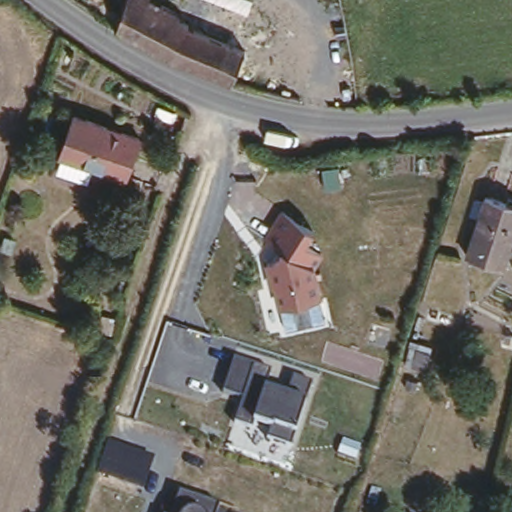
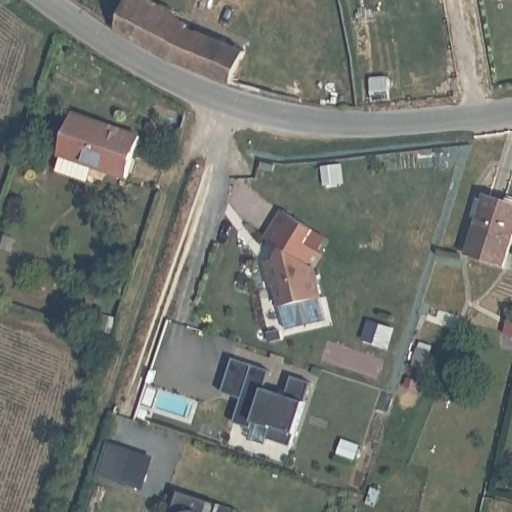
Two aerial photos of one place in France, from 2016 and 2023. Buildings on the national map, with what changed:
unchanged [(180,15),(177,21),(187,26),(185,29),(242,51),(231,80),(205,73),(181,63),(171,59),(164,55),(154,49),(115,26),(125,0),(155,0),(180,15)]
unchanged [(139,134),(126,172),(59,150),(73,111),(139,134)]
unchanged [(469,249),(486,193),(512,201),(512,241),(506,262),(469,249)]
unchanged [(282,208),(313,225),(308,240),(322,251),(315,264),(320,293),(278,302),(267,256),(277,256),(282,243),(268,236),(282,208)]
unchanged [(272,371),(266,388),(286,393),(293,376),(313,381),(292,447),(267,439),(271,427),(254,422),(252,430),(234,425),(241,401),(221,394),(234,358),(272,371)]
unchanged [(142,483),(102,469),(110,438),(151,455),(142,483)]
unchanged [(215,512),(172,512),(181,489),(217,501),(215,512)]
unchanged [(165,512),(163,512),(163,511),(165,512)]

